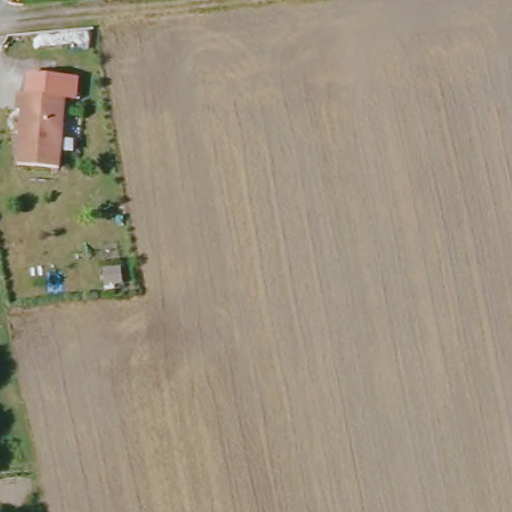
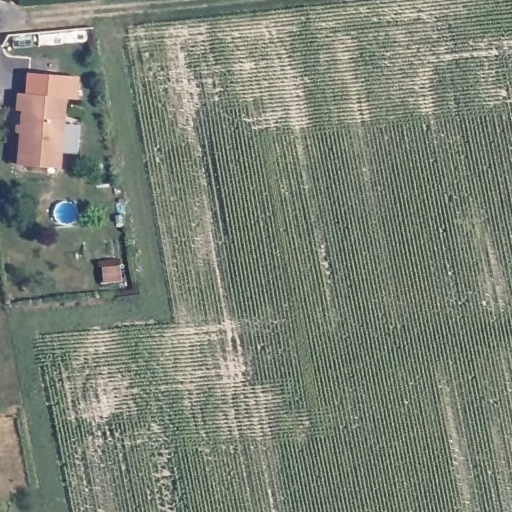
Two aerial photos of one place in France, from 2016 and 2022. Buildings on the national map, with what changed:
unchanged [(56,166),(16,162),(20,105),(15,105),(16,90),(28,91),(30,75),(78,79),(77,96),(63,94),(56,166)]

